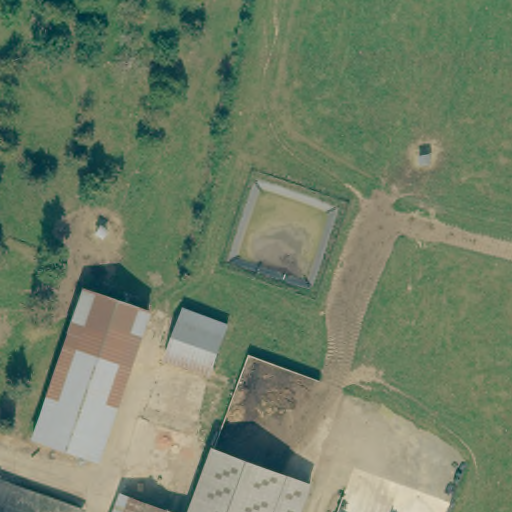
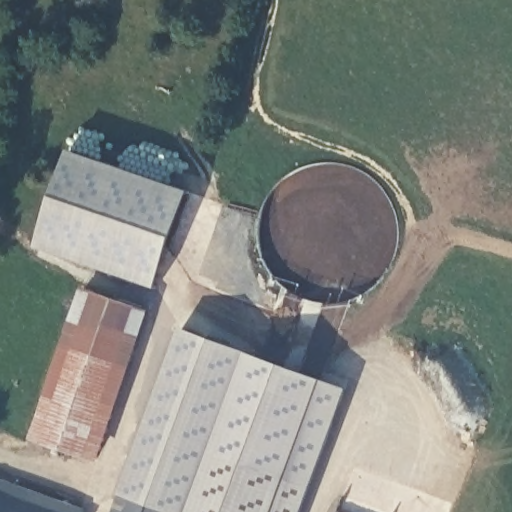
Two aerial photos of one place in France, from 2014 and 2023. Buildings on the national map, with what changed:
new [(71,152),(190,192),(158,289),(36,248),(71,152)]
unchanged [(149,315),(98,466),(34,446),(84,293),(149,314),(149,315)]
new [(345,390),(310,485),(213,449),(190,512),(167,512),(129,499),(121,496),(183,330),(345,390)]
unchanged [(310,485),(299,512),(190,512),(213,449),(310,485)]
unchanged [(85,512),(0,512),(0,481),(23,489),(85,512)]
unchanged [(129,499),(167,512),(109,512),(116,494),(129,499)]

